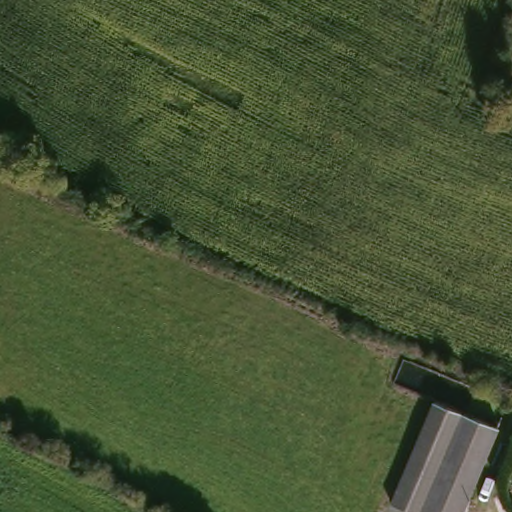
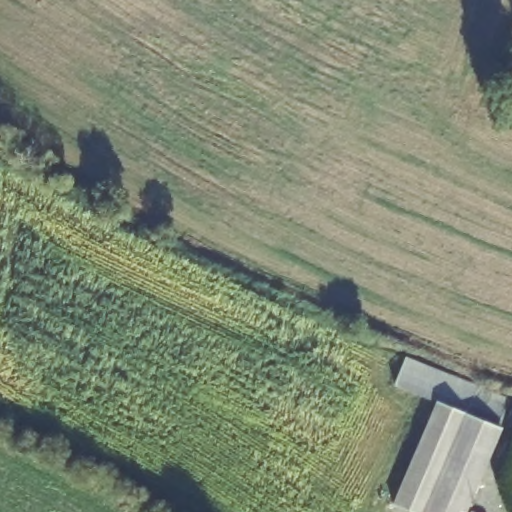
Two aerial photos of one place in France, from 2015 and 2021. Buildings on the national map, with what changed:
unchanged [(443,397),(404,384),(411,357),(508,397),(464,507),(406,480),(443,397)]
unchanged [(462,512),(426,512),(398,498),(406,480),(464,507),(462,512)]

